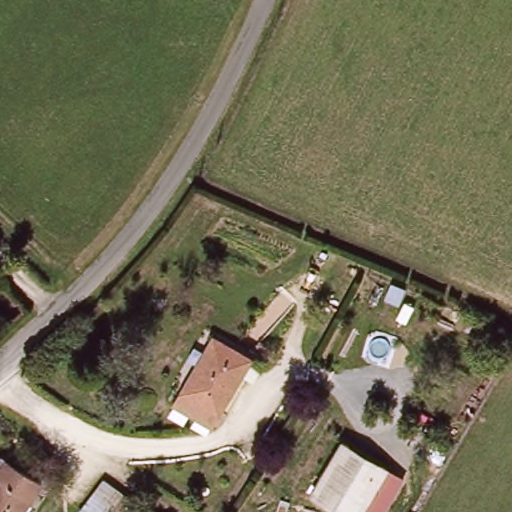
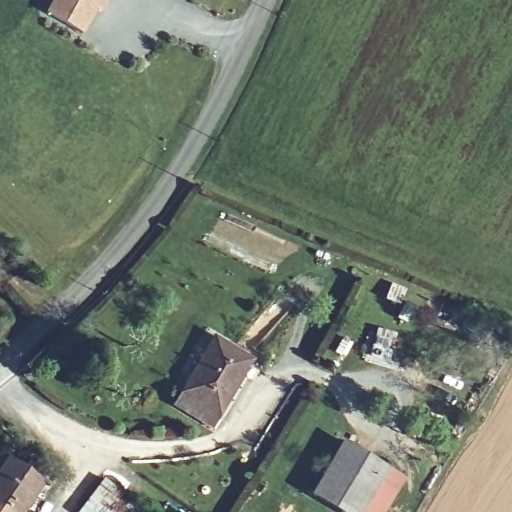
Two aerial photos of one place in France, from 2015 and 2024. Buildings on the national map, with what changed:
new [(95,9),(81,35),(44,14),(52,0),(108,0),(100,12),(95,9)]
unchanged [(216,339),(251,360),(212,427),(176,406),(216,339)]
unchanged [(344,444),(404,479),(384,512),(343,512),(314,495),(344,444)]
unchanged [(8,462),(41,485),(22,512),(0,512),(0,475),(8,462)]
unchanged [(150,512),(79,512),(103,478),(150,512)]

